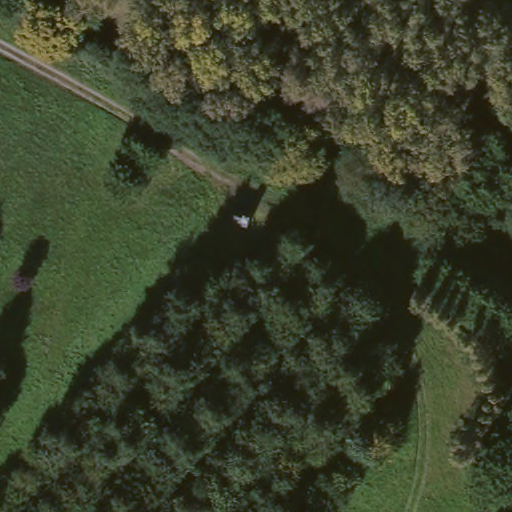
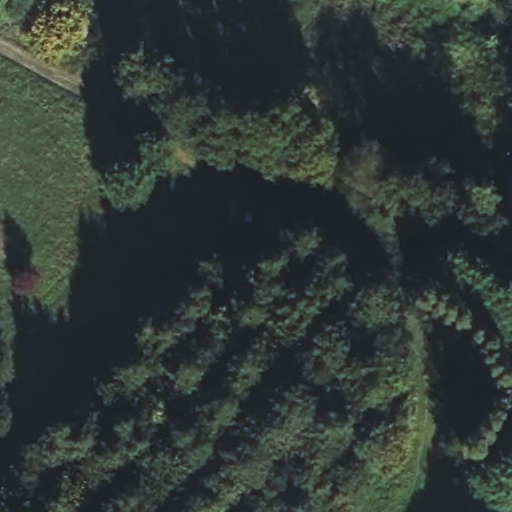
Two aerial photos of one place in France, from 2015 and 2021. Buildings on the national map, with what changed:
unchanged [(253,219),(246,232),(229,225),(235,211),(253,219)]

